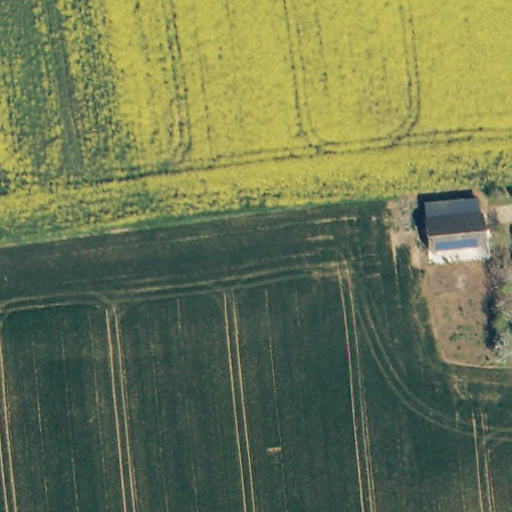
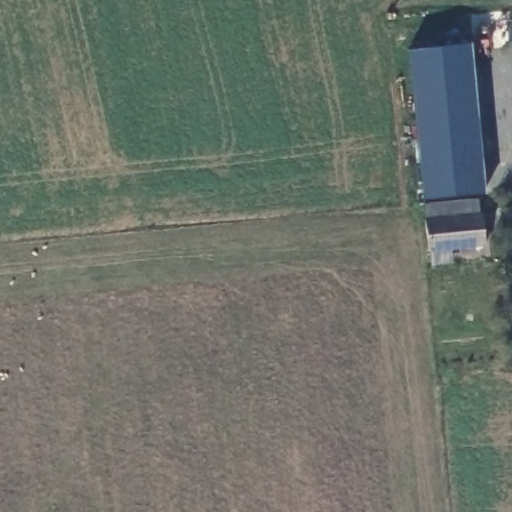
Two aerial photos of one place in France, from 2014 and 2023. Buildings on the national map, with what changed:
new [(422,198),(408,49),(469,42),(483,194),(422,198)]
new [(423,220),(423,202),(481,198),(482,216),(423,220)]
unchanged [(425,241),(423,220),(482,216),(485,245),(426,250),(425,241)]

